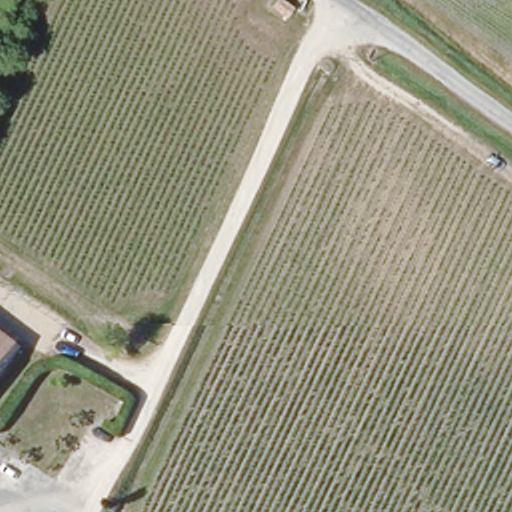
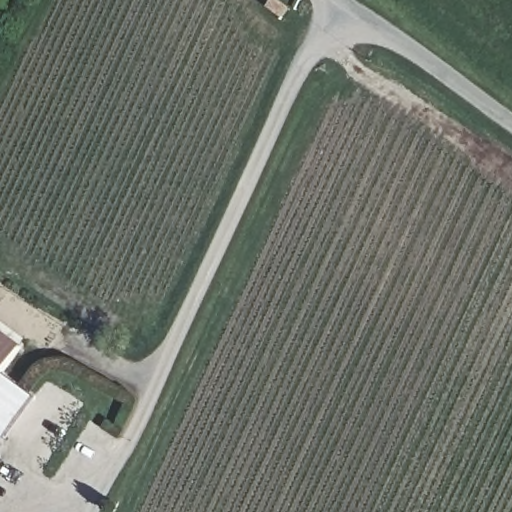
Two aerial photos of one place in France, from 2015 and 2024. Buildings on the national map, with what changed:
unchanged [(0,378),(0,335),(19,350),(0,378)]
new [(38,397),(8,437),(0,432),(0,377),(4,372),(38,397)]

